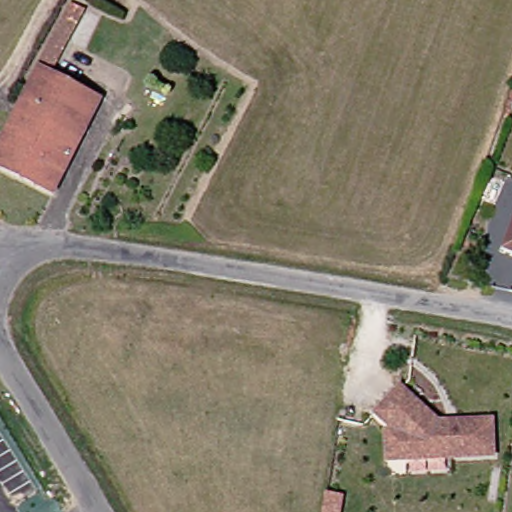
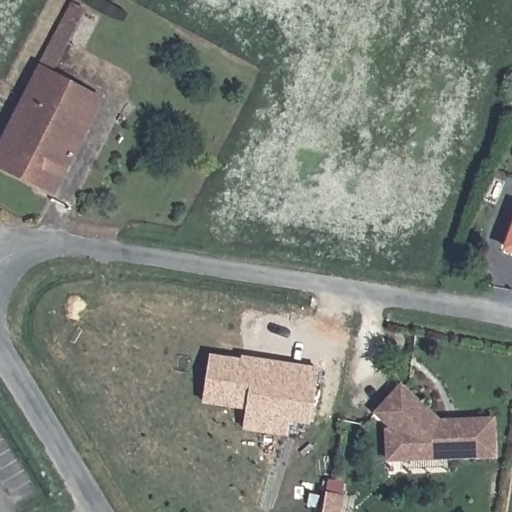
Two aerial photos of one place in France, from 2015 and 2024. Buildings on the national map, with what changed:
unchanged [(41,71),(56,79),(41,110),(74,127),(42,193),(0,172),(0,125),(63,4),(73,10),(41,71)]
unchanged [(74,127),(41,110),(56,79),(90,96),(74,127)]
unchanged [(500,249),(512,216),(512,253),(500,249)]
new [(313,424),(291,422),(290,437),(244,430),(245,409),(203,403),(210,353),(243,359),(243,355),(319,366),(313,424)]
unchanged [(397,431),(378,412),(404,386),(448,430),(463,430),(463,423),(494,424),(494,461),(407,460),(388,460),(388,431),(397,431)]
new [(344,495),(340,512),(320,512),(324,491),(344,495)]

